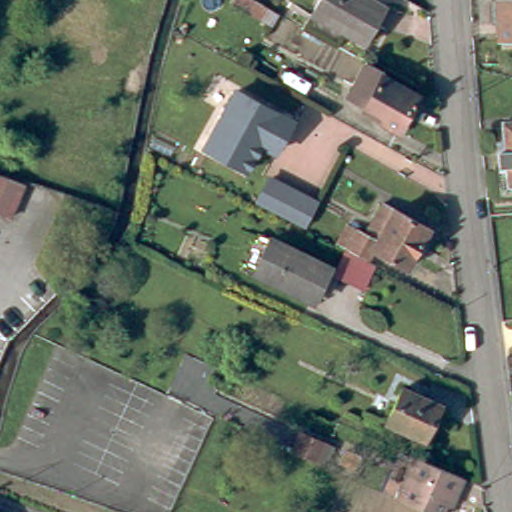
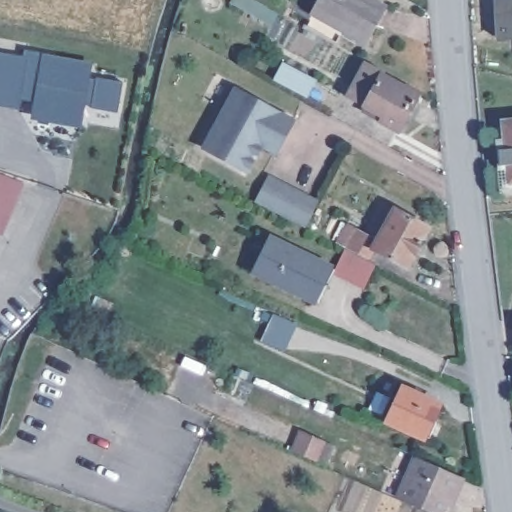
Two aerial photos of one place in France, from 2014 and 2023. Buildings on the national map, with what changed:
unchanged [(382,1),(362,37),(310,7),(314,0),(381,0),(382,1)]
unchanged [(512,0),(512,41),(490,42),(489,25),(484,26),(482,2),(512,0)]
new [(122,82),(117,111),(92,108),(92,106),(85,105),(81,128),(31,119),(35,101),(20,99),(20,109),(0,107),(0,53),(22,56),(23,49),(41,53),(90,62),(88,78),(96,80),(96,78),(122,82)]
unchanged [(373,109),(336,89),(355,55),(392,75),(389,80),(424,100),(422,104),(427,106),(418,123),(413,121),(406,134),(390,125),(370,115),(373,109)]
new [(284,66),(315,82),(307,96),(277,79),(284,66)]
unchanged [(272,153),(258,145),(244,171),(204,149),(234,92),(283,118),(290,121),(272,153)]
unchanged [(512,118),(512,181),(501,182),(500,165),(493,165),(491,146),(497,146),(495,119),(512,118)]
unchanged [(0,174),(21,183),(14,200),(6,218),(0,216),(0,174)]
unchanged [(253,200),(265,176),(310,197),(301,226),(253,200)]
unchanged [(387,203),(431,226),(410,267),(375,249),(370,258),(348,248),(338,242),(349,222),(370,233),(387,203)]
unchanged [(256,273),(272,238),(330,265),(314,300),(256,273)]
unchanged [(335,271),(348,248),(376,263),(363,287),(335,271)]
new [(278,313),(297,324),(282,350),(264,339),(278,313)]
unchanged [(388,421),(405,386),(443,404),(427,438),(388,421)]
unchanged [(324,442),(316,458),(293,448),(300,431),(324,442)]
unchanged [(341,460),(345,451),(360,457),(355,466),(341,460)]
unchanged [(444,512),(429,512),(398,498),(416,459),(463,480),(456,496),(451,507),(447,505),(444,512)]

